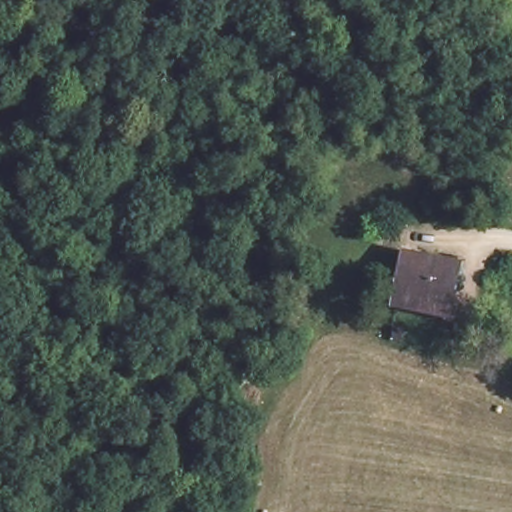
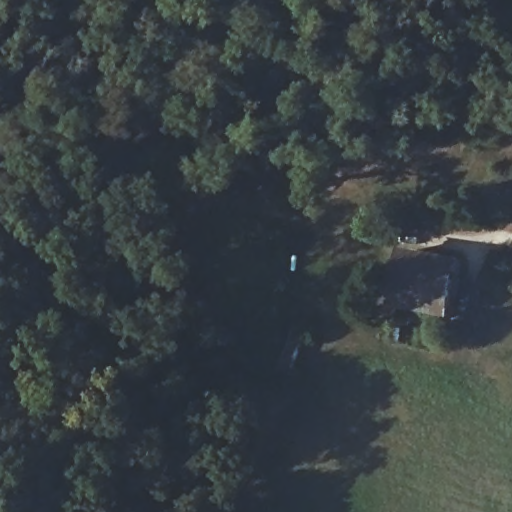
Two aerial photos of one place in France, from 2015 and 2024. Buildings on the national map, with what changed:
unchanged [(453,283),(460,285),(457,296),(451,295),(447,313),(394,302),(405,250),(457,262),(453,283)]

